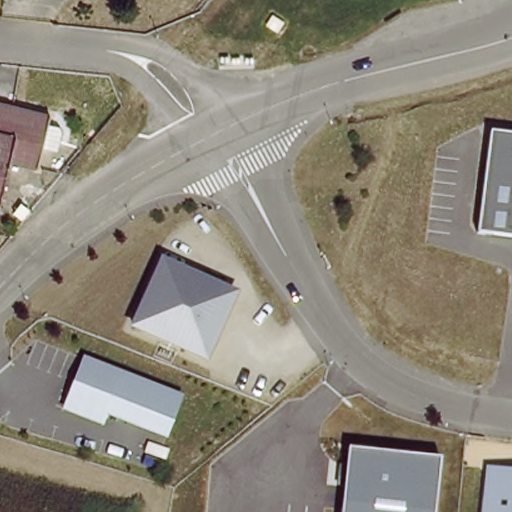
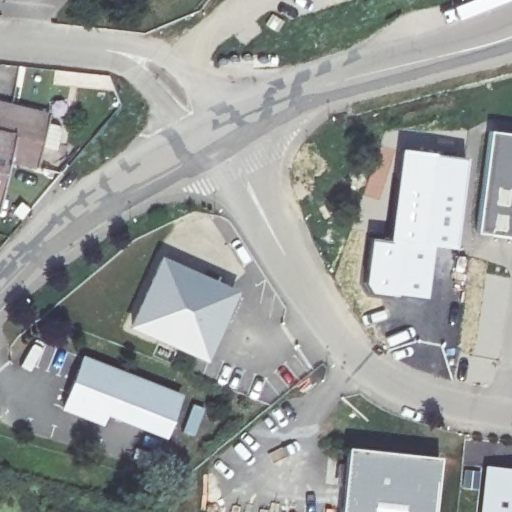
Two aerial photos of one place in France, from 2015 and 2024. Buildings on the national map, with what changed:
unchanged [(38,163),(10,156),(0,196),(0,96),(50,108),(38,163)]
unchanged [(488,133),(512,136),(512,240),(478,236),(488,133)]
new [(376,144),(398,147),(395,165),(391,164),(380,199),(363,195),(376,144)]
new [(367,237),(386,239),(395,165),(398,147),(466,156),(455,250),(432,247),(425,297),(366,293),(362,280),(367,237)]
unchanged [(236,292),(211,361),(130,328),(161,257),(236,292)]
unchanged [(166,439),(106,418),(104,424),(61,408),(83,355),(183,393),(166,439)]
unchanged [(434,512),(341,512),(349,447),(440,458),(434,512)]
unchanged [(512,512),(479,512),(485,465),(512,468),(512,512)]

